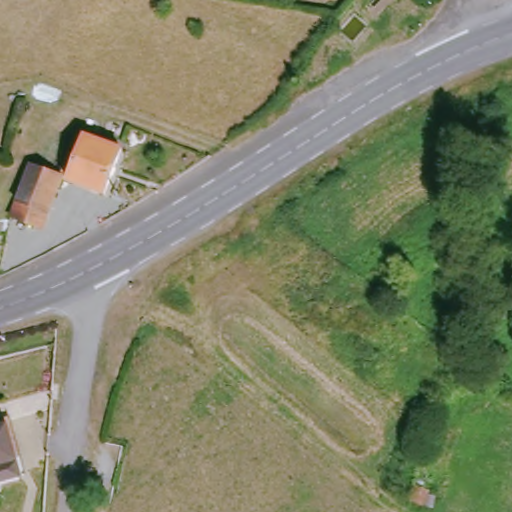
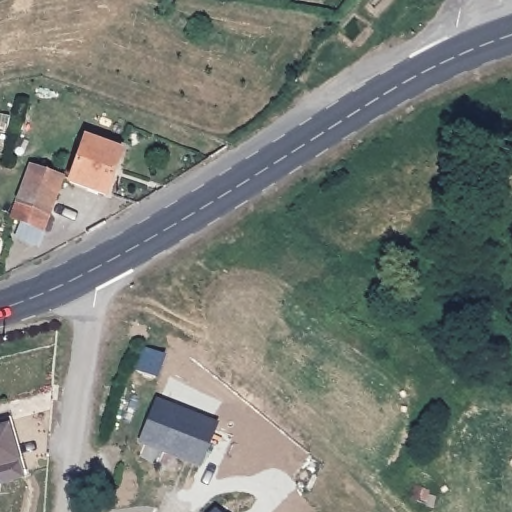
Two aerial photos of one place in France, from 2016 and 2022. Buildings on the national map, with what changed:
unchanged [(84,133),(125,147),(108,198),(66,184),(84,133)]
unchanged [(29,164),(65,177),(45,232),(9,219),(29,164)]
new [(139,442),(157,398),(217,423),(200,466),(139,442)]
unchanged [(0,482),(0,421),(10,418),(20,458),(25,475),(0,482)]
new [(218,512),(213,512),(215,509),(218,512)]

